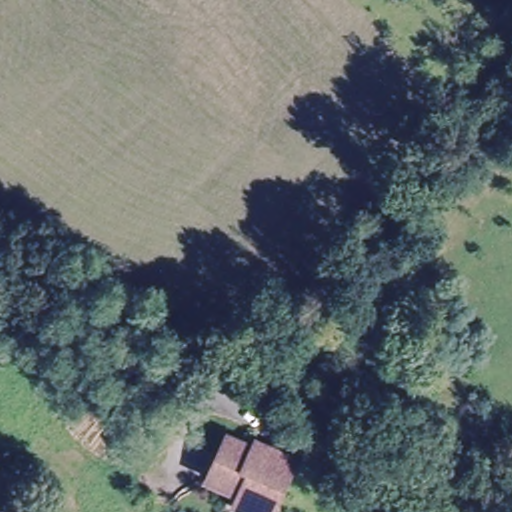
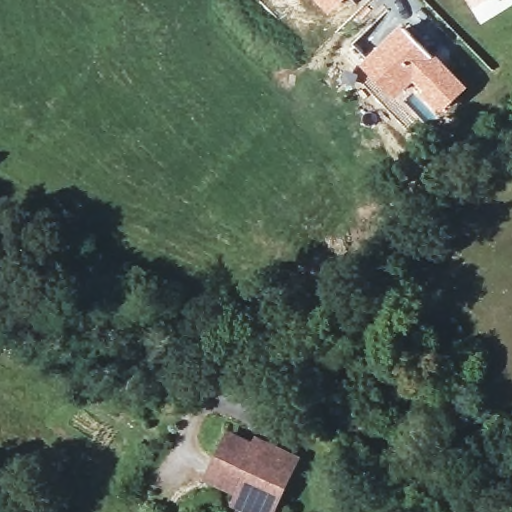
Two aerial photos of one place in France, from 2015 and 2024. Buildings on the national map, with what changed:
new [(328,16),(313,0),(345,0),(328,16)]
new [(472,10),(466,0),(487,0),(472,10)]
new [(400,23),(434,56),(436,55),(468,87),(427,125),(418,116),(407,127),(364,83),(370,77),(359,64),(400,23)]
unchanged [(239,492),(206,477),(226,435),(252,447),(256,440),(279,450),(296,457),(273,508),(272,512),(251,512),(234,504),(239,492)]

